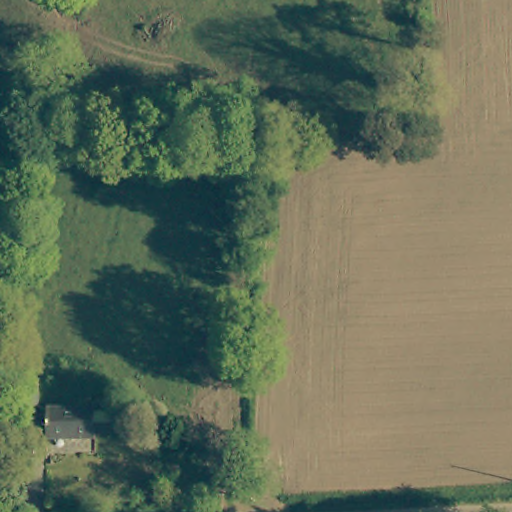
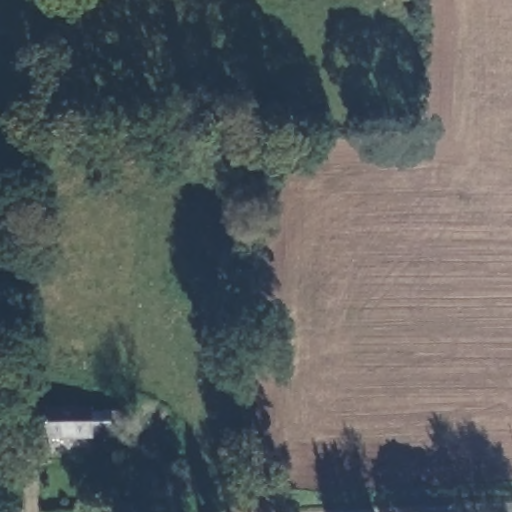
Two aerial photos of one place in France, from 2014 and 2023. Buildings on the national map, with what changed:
unchanged [(3,394),(3,363),(30,364),(30,394),(3,394)]
unchanged [(46,436),(46,404),(92,404),(92,408),(113,408),(114,431),(93,431),(94,434),(46,436)]

